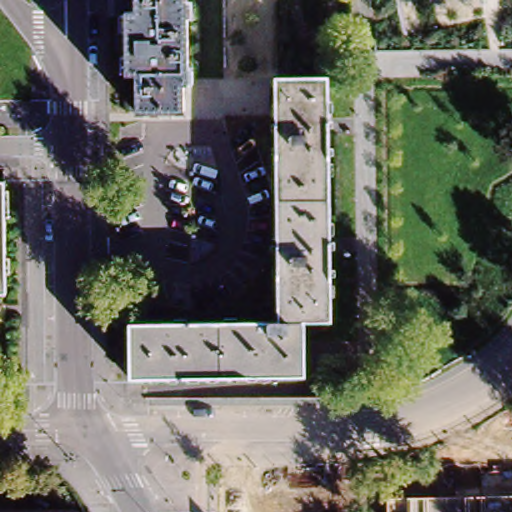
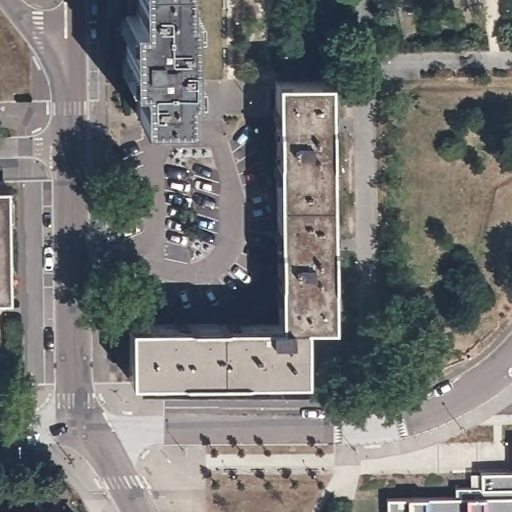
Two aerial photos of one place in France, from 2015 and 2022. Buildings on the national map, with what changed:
unchanged [(127,76),(127,53),(118,53),(118,0),(183,0),(183,3),(188,3),(189,89),(185,89),(185,114),(137,115),(137,76),(127,76)]
unchanged [(272,75),(325,75),(329,323),(302,323),(276,323),(272,75)]
unchanged [(0,183),(3,183),(5,294),(0,294),(0,183)]
unchanged [(302,378),(128,377),(127,324),(276,323),(302,323),(302,378)]
new [(387,497),(407,496),(427,496),(455,495),(455,487),(482,487),(481,471),(512,470),(512,512),(387,512),(387,497)]

